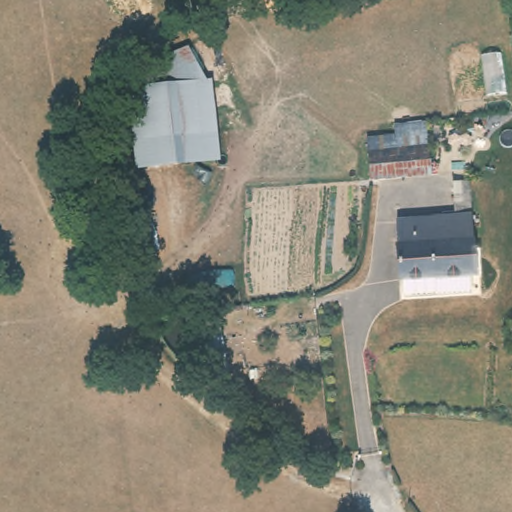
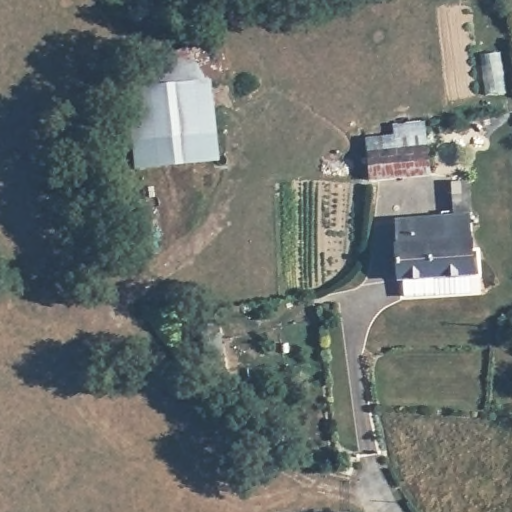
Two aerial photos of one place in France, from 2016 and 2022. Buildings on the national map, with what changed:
unchanged [(130,83),(186,51),(214,95),(218,157),(132,169),(130,83)]
unchanged [(433,172),(372,178),(369,135),(398,132),(397,121),(429,118),(433,172)]
unchanged [(405,275),(397,276),(394,218),(438,215),(438,207),(452,207),(451,180),(466,180),(471,245),(480,245),(481,270),(469,270),(469,292),(404,295),(405,275)]

